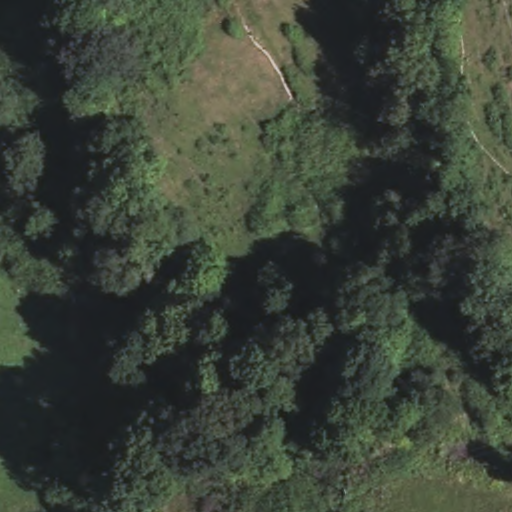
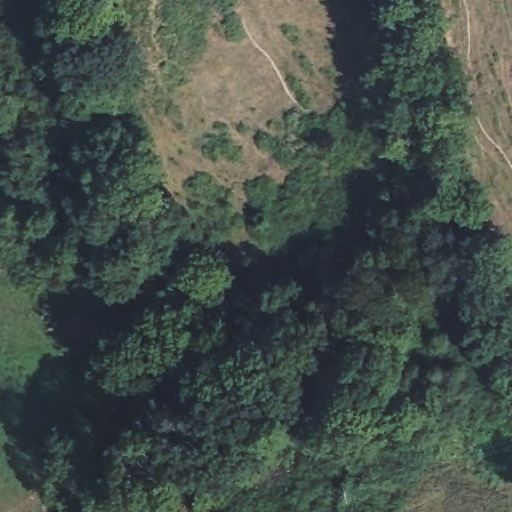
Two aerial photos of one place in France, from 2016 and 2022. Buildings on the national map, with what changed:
[]

